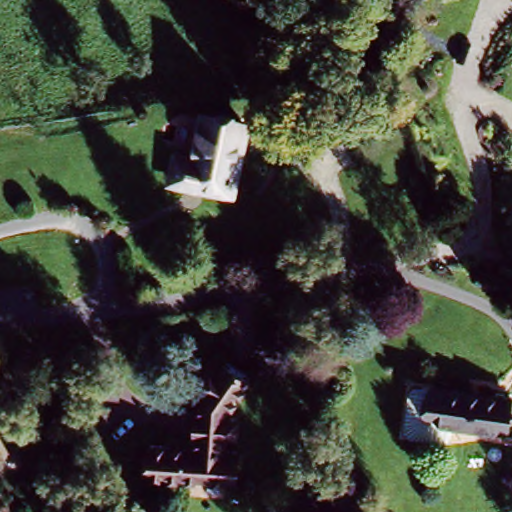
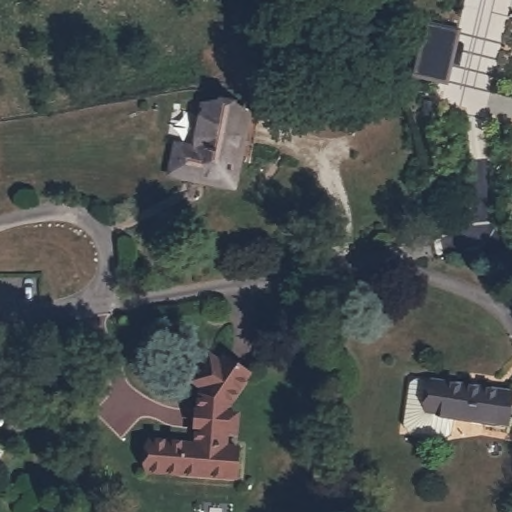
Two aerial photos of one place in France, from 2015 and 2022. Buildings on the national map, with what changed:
unchanged [(167,177),(173,156),(186,160),(202,115),(241,127),(220,194),(167,177)]
unchanged [(161,452),(200,455),(204,409),(205,403),(209,399),(200,388),(225,367),(233,378),(239,373),(259,397),(231,421),(231,430),(238,430),(238,447),(230,447),(230,455),(245,456),(244,488),(160,483),(161,452)]
unchanged [(506,431),(452,422),(450,440),(444,444),(407,438),(402,432),(408,389),(415,385),(426,387),(510,398),(506,431)]

